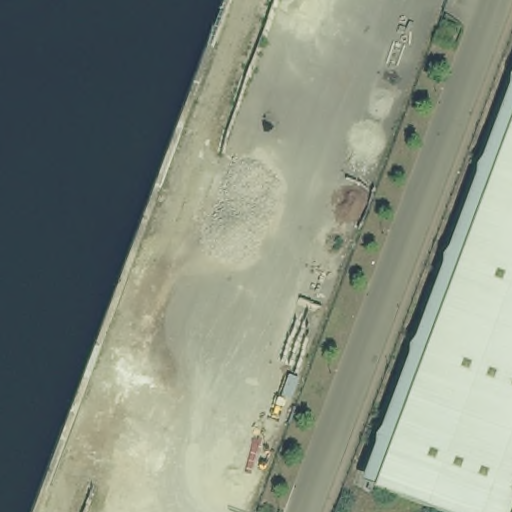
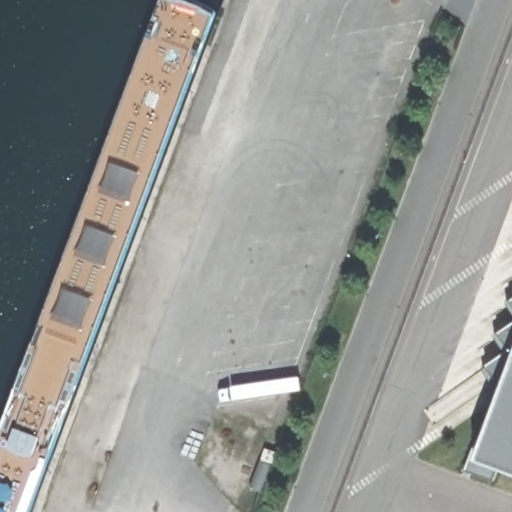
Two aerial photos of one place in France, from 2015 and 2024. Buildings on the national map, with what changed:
demolished [(512,130),(512,512),(440,512),(377,487),(512,130)]
new [(512,300),(512,313),(506,304),(512,300)]
new [(483,442),(505,385),(496,381),(491,383),(483,371),(509,351),(504,352),(494,337),(512,324),(512,476),(497,471),(492,482),(464,472),(476,440),(483,442)]

